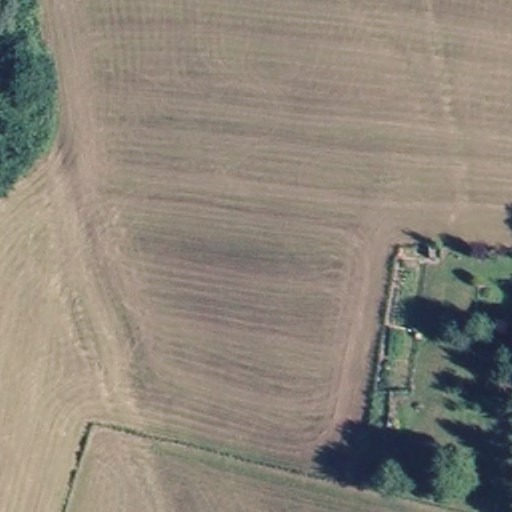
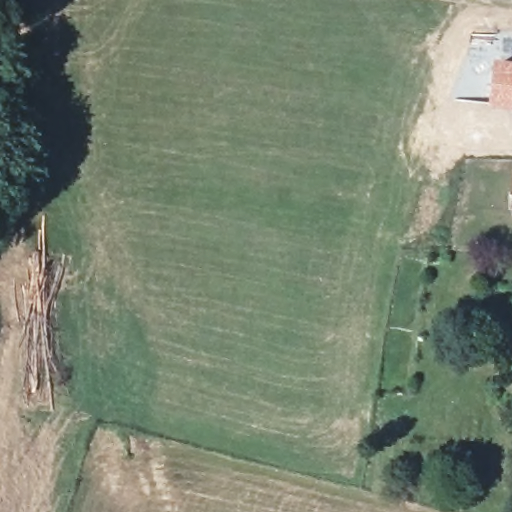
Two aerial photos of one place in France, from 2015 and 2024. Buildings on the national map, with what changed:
new [(493,59),(512,61),(512,111),(488,107),(493,59)]

